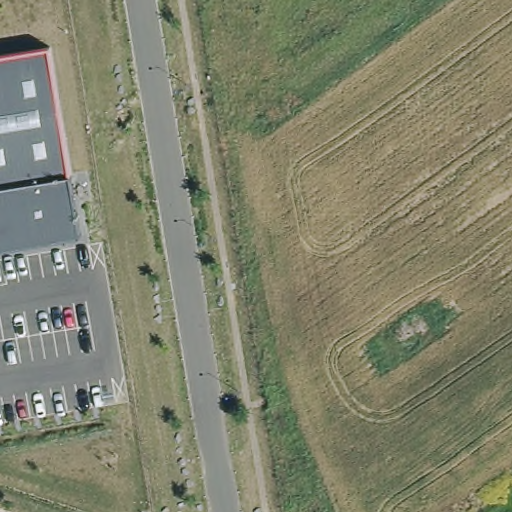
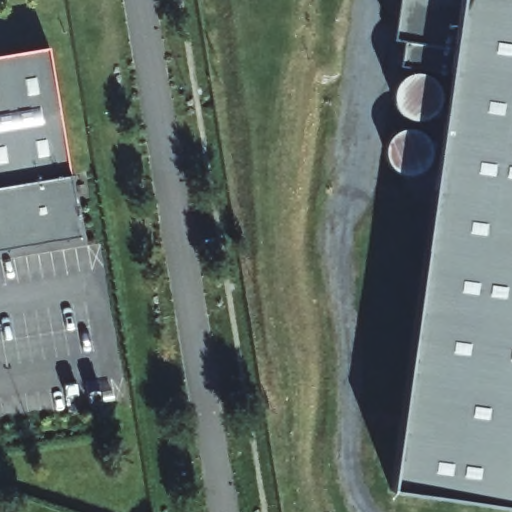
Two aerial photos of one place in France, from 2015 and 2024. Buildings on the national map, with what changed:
new [(452,73),(402,66),(406,40),(397,38),(402,0),(512,0),(512,507),(393,490),(452,73)]
unchanged [(75,236),(0,248),(0,57),(46,49),(67,178),(75,236)]

